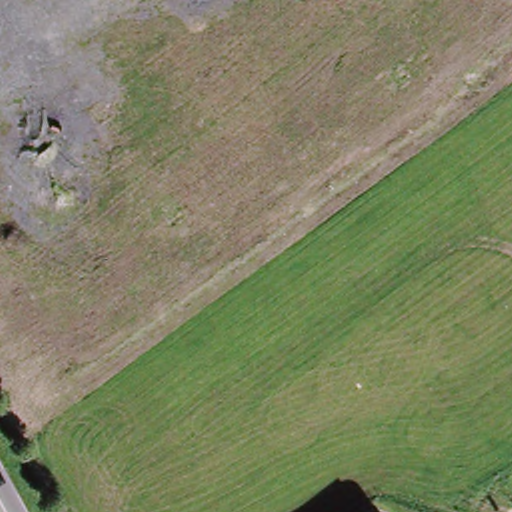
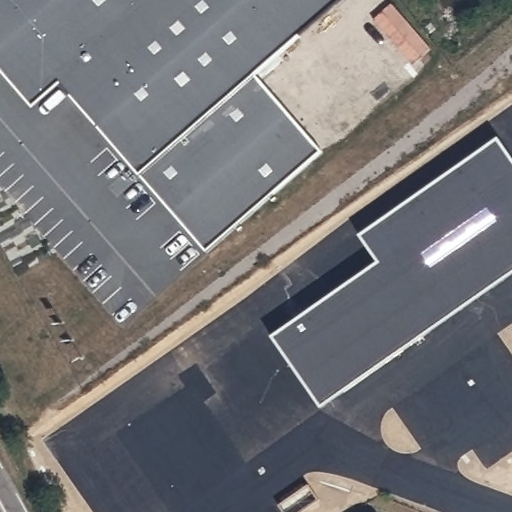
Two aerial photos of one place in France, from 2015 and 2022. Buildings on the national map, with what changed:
new [(260,82),(326,159),(209,260),(63,92),(36,115),(0,73),(0,0),(267,0),(305,43),(260,82)]
new [(267,0),(353,0),(305,43),(267,0)]

